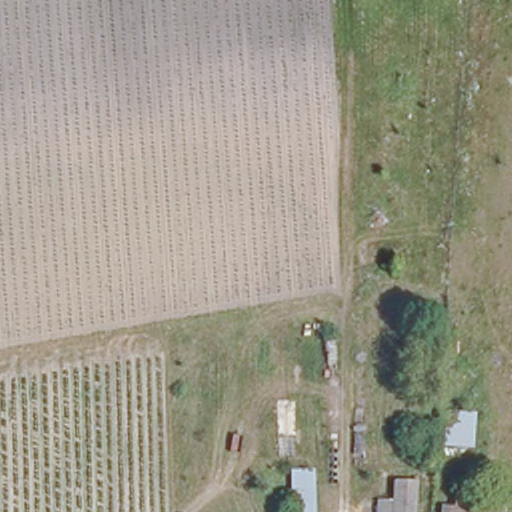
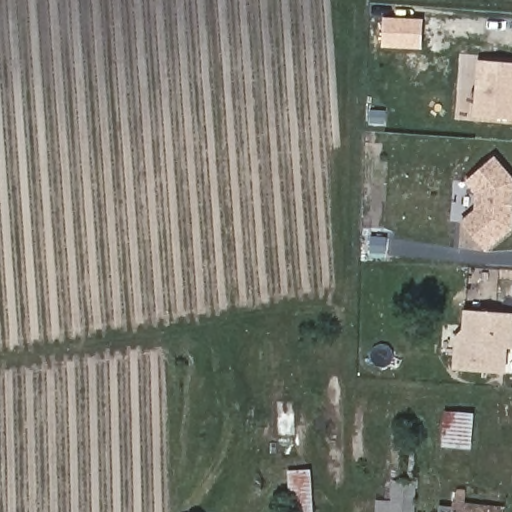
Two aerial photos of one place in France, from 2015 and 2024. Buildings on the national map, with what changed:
new [(512,118),(474,114),(480,59),(512,62),(512,118)]
new [(461,221),(475,209),(477,193),(466,181),(493,156),(512,177),(512,218),(511,226),(486,249),(461,221)]
new [(512,346),(505,346),(503,372),(454,369),(457,337),(463,330),(465,309),(512,312),(512,346)]
unchanged [(440,447),(441,409),(472,411),(471,448),(440,447)]
unchanged [(314,512),(291,512),(290,472),(312,469),(314,512)]
unchanged [(377,501),(389,501),(390,478),(418,481),(417,512),(377,512),(377,501)]
unchanged [(453,487),(469,489),(469,502),(504,504),(503,512),(451,512),(453,487)]

